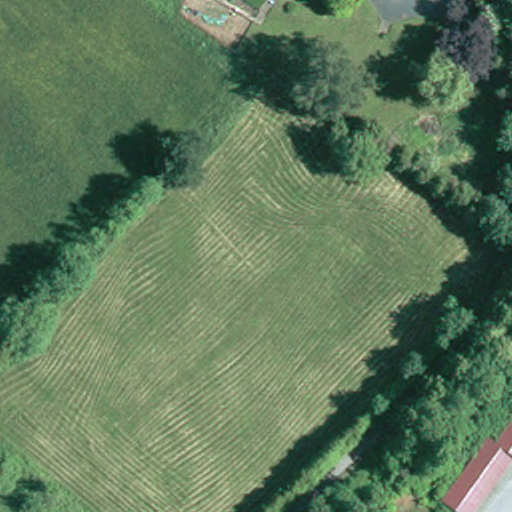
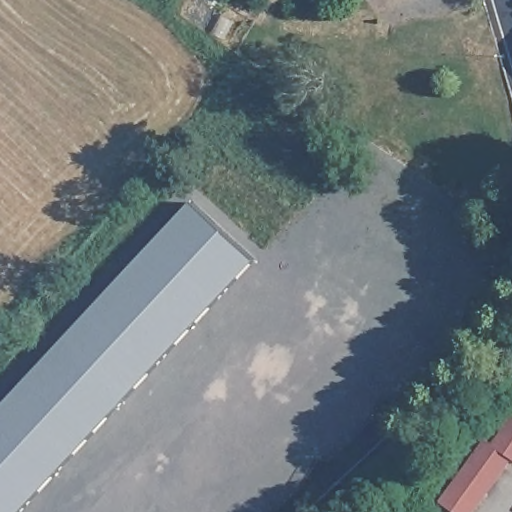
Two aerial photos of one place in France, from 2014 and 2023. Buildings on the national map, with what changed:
new [(255,258),(21,512),(0,512),(0,409),(193,201),(255,258)]
unchanged [(479,512),(460,512),(449,503),(495,441),(501,445),(512,431),(512,469),(479,512)]

